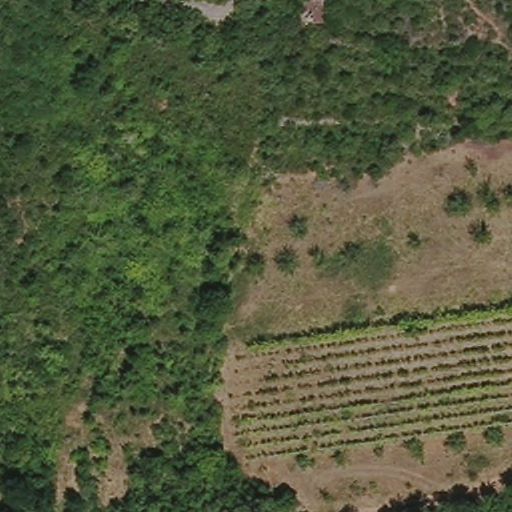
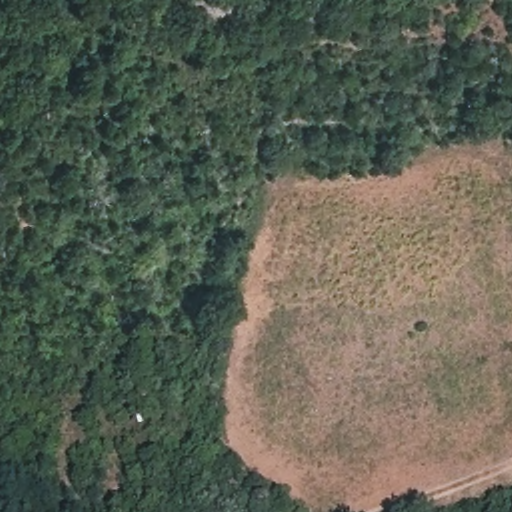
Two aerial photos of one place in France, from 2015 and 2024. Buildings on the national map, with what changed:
unchanged [(334,11),(313,1),(314,0),(339,0),(334,11)]

